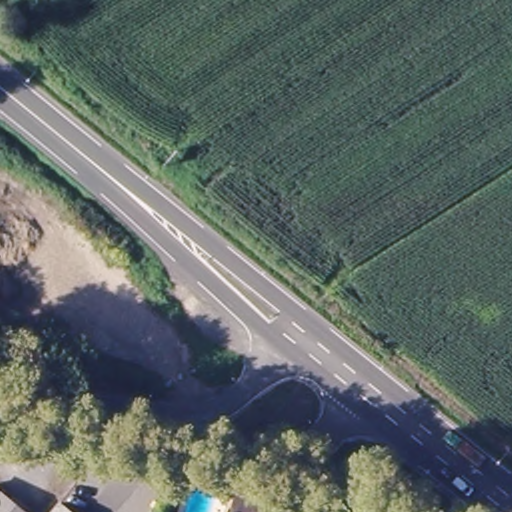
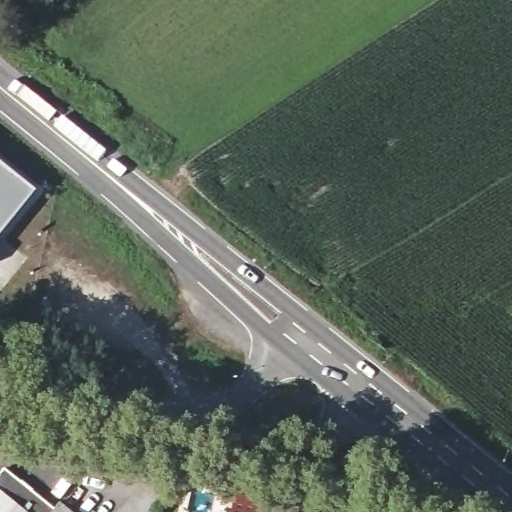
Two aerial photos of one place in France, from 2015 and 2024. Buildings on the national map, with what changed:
new [(37,189),(0,236),(0,159),(37,189)]
unchanged [(24,512),(0,512),(0,493),(24,512)]
unchanged [(270,512),(233,512),(237,494),(273,501),(270,512)]
unchanged [(71,512),(51,512),(59,502),(71,512)]

